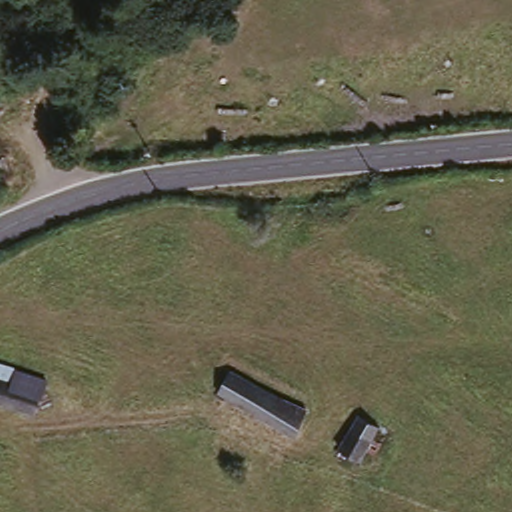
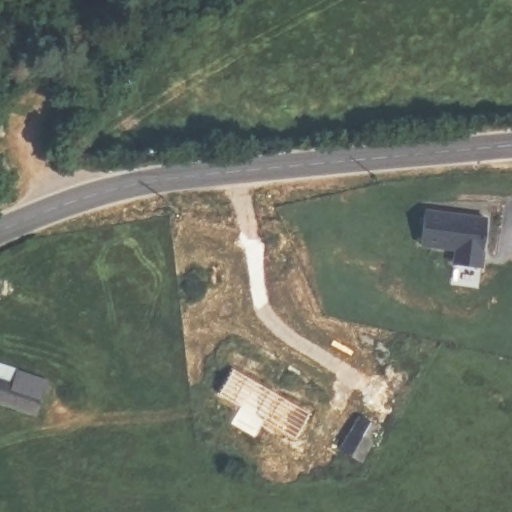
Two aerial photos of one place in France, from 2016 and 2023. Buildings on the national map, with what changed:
new [(427,207),(489,215),(483,263),(456,260),(458,244),(423,239),(427,207)]
unchanged [(1,359),(51,377),(38,413),(0,401),(0,360),(1,359)]
unchanged [(307,413),(297,433),(221,396),(230,373),(307,413)]
unchanged [(336,460),(352,424),(372,432),(382,437),(372,458),(361,453),(354,467),(336,460)]

